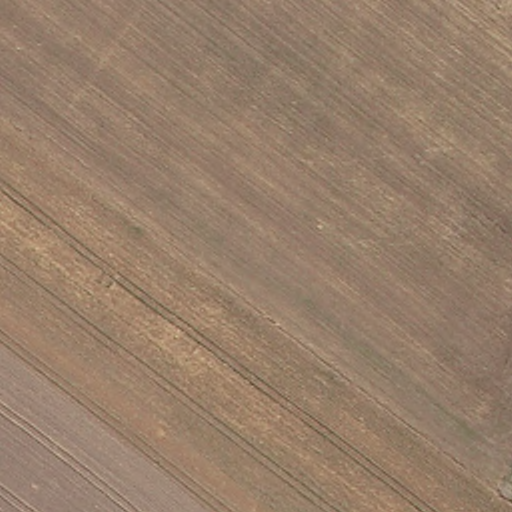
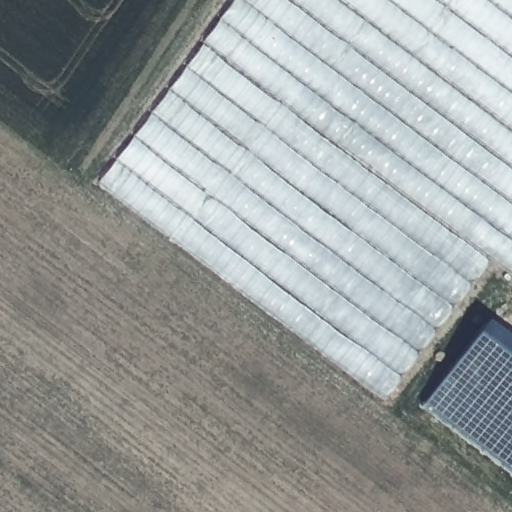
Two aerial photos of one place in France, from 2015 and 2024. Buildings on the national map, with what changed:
new [(512,0),(512,277),(489,260),(381,401),(96,184),(231,0),(512,0)]
new [(486,323),(512,344),(512,474),(422,406),(486,323)]

